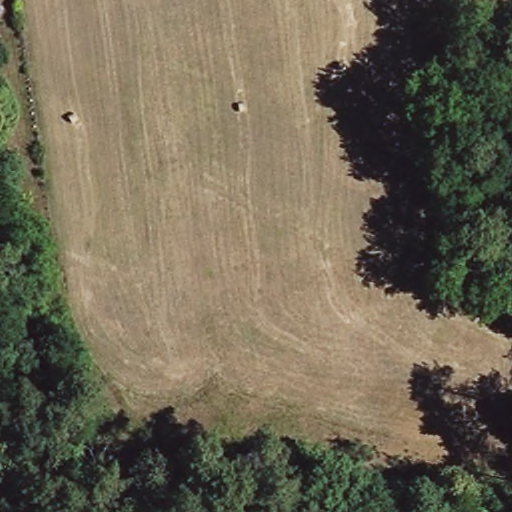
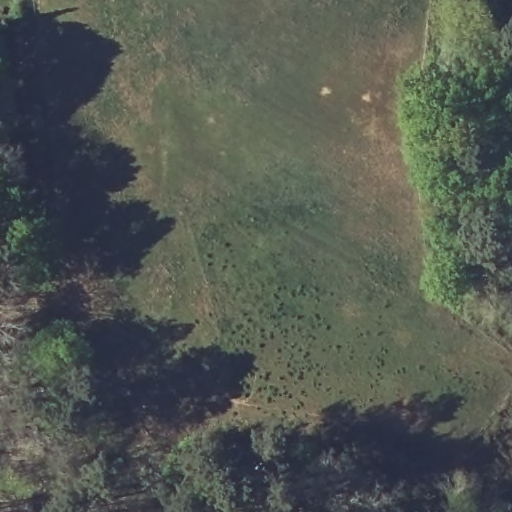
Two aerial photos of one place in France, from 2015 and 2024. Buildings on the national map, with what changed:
[]

